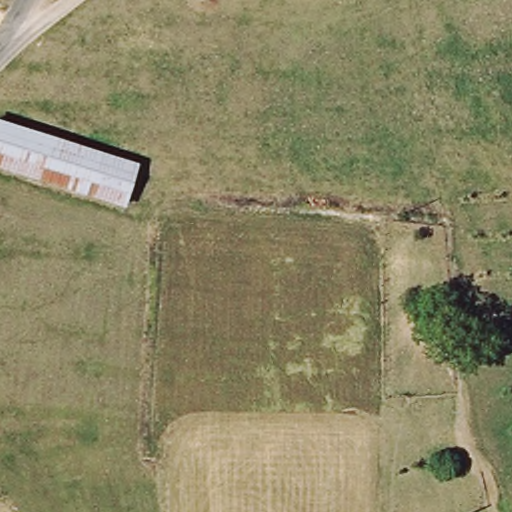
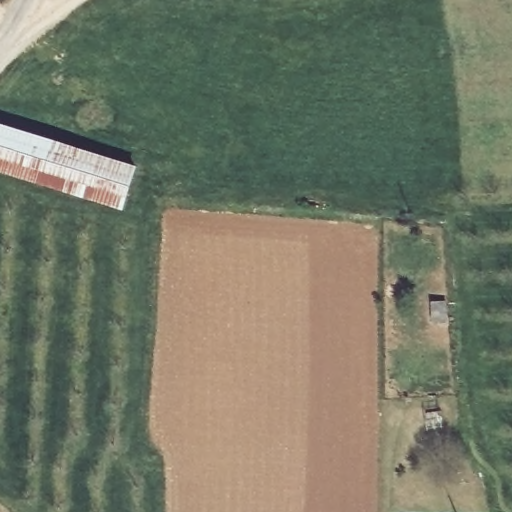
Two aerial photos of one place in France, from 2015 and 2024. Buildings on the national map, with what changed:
unchanged [(143,169),(132,202),(0,169),(0,129),(143,169)]

